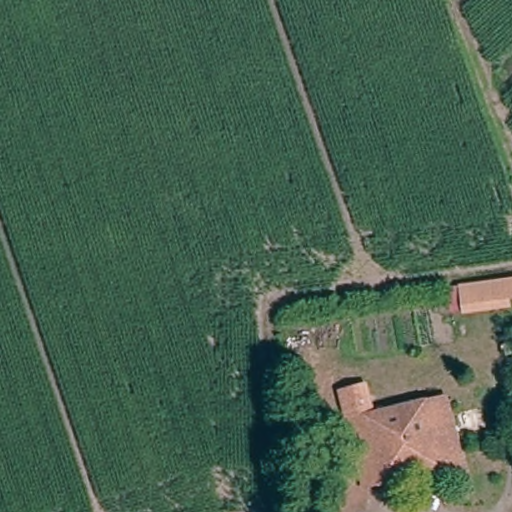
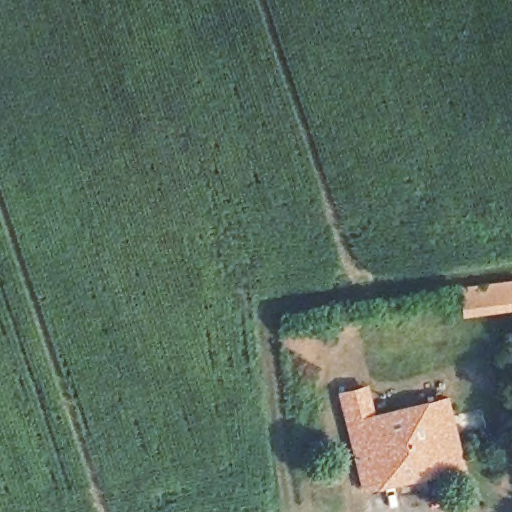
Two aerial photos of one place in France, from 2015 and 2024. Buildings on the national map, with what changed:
unchanged [(477,310),(476,305),(474,284),(511,279),(512,279),(512,305),(477,310)]
unchanged [(366,391),(367,391),(374,420),(447,402),(462,466),(442,471),(366,491),(342,397),(366,391)]

